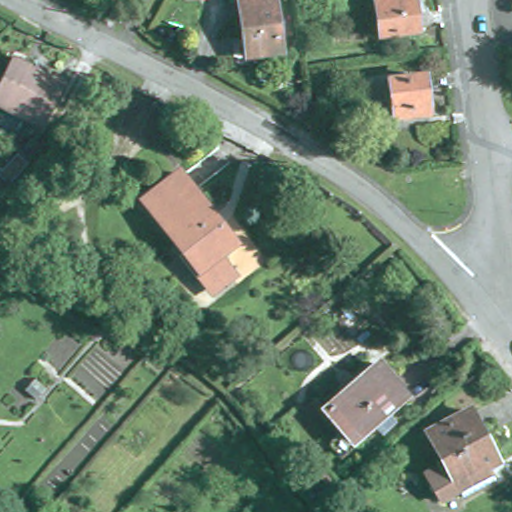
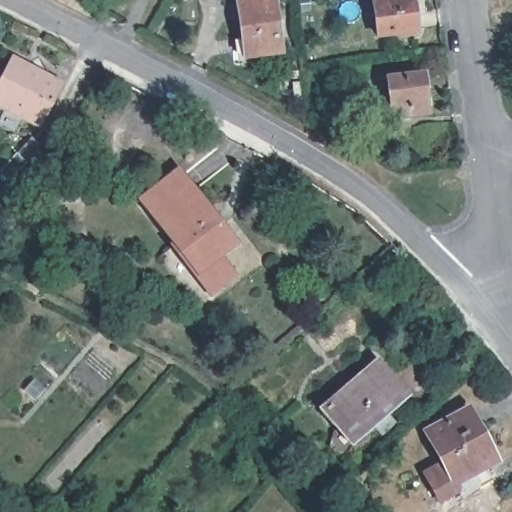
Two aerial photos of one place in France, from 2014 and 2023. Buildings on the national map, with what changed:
unchanged [(277,0),(286,54),(248,59),(240,4),(277,0)]
unchanged [(381,40),(376,0),(415,0),(420,35),(381,40)]
unchanged [(51,127),(0,101),(0,100),(22,57),(73,84),(51,127)]
unchanged [(425,80),(430,118),(397,121),(392,84),(425,80)]
unchanged [(0,172),(0,171),(16,154),(27,163),(10,182),(0,172)]
unchanged [(181,257),(145,210),(178,183),(232,252),(216,264),(229,280),(208,297),(178,259),(181,257)]
unchanged [(346,422),(341,427),(325,409),(377,364),(405,397),(359,437),(346,422)]
unchanged [(450,459),(433,428),(474,406),(501,457),(493,461),(500,474),(466,492),(464,487),(445,497),(430,470),(450,459)]

